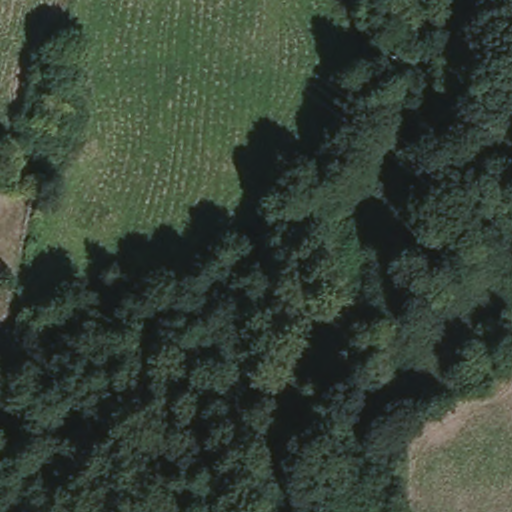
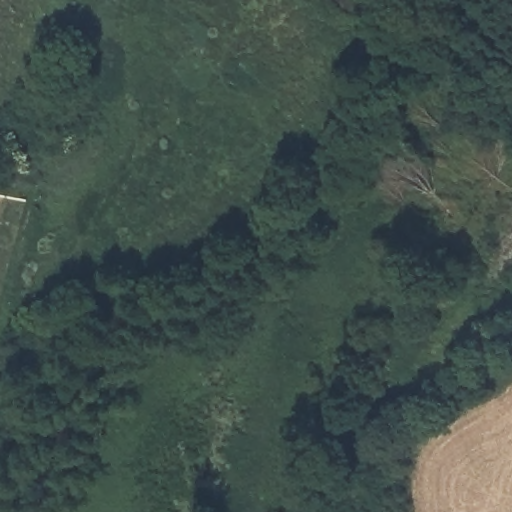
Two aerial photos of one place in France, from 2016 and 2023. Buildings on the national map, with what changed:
[]

